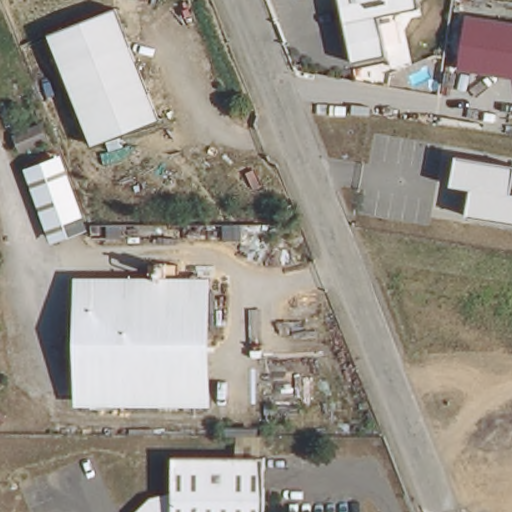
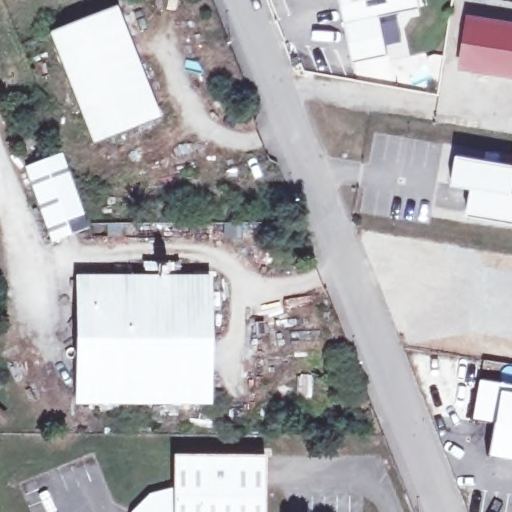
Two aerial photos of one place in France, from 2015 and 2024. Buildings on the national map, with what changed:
unchanged [(379,16),(382,26),(399,21),(404,42),(387,46),(389,54),(354,61),(340,0),(419,0),(421,9),(379,16)]
unchanged [(48,33),(115,6),(159,118),(93,145),(48,33)]
unchanged [(512,77),(461,69),(467,15),(512,22),(512,77)]
unchanged [(90,228),(50,243),(20,170),(63,154),(90,228)]
unchanged [(469,190),(451,184),(457,156),(512,166),(512,224),(466,216),(469,190)]
unchanged [(180,401),(80,403),(78,302),(154,300),(155,288),(178,288),(179,302),(180,401)]
unchanged [(179,302),(203,302),(205,401),(180,401),(179,302)]
new [(472,420),(479,381),(512,387),(512,461),(488,457),(494,424),(472,420)]
unchanged [(171,454),(264,454),(264,512),(137,512),(146,500),(171,488),(171,454)]

